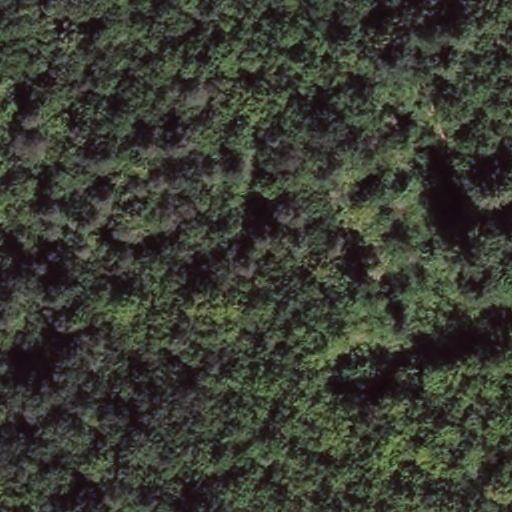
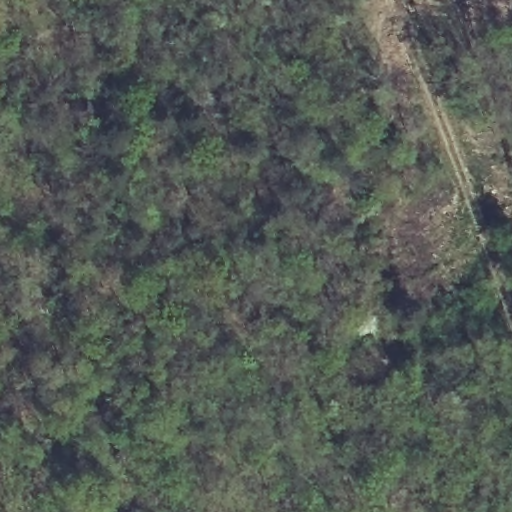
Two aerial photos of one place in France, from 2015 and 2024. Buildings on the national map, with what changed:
[]

